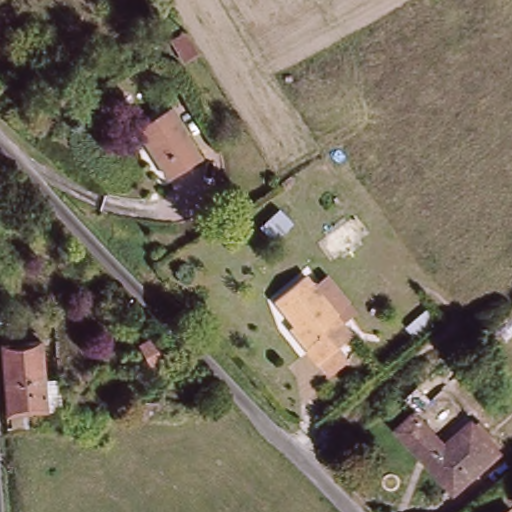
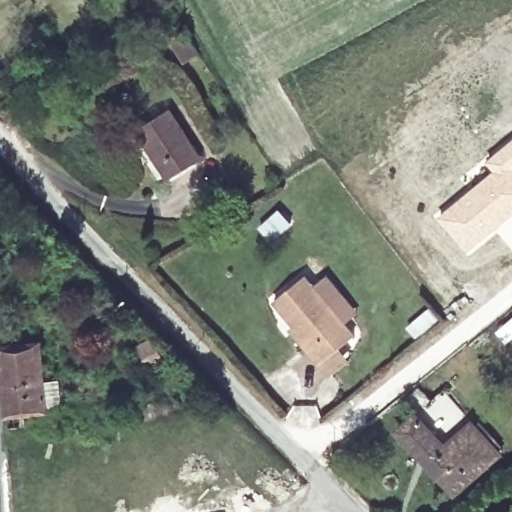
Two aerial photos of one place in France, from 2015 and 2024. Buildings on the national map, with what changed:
unchanged [(2,118),(0,117),(0,97),(28,78),(39,94),(2,118)]
unchanged [(172,119),(201,158),(174,178),(146,138),(172,119)]
new [(487,160),(512,138),(512,215),(468,251),(438,216),(493,169),(487,160)]
unchanged [(277,303),(308,282),(353,341),(317,368),(308,357),(291,335),(297,330),(277,303)]
new [(428,306),(440,318),(416,338),(405,327),(428,306)]
unchanged [(5,344),(43,344),(64,342),(65,360),(51,361),(51,377),(64,377),(64,390),(54,390),(55,420),(7,421),(5,344)]
unchanged [(503,457),(456,498),(400,432),(418,417),(445,447),(473,422),(503,457)]

